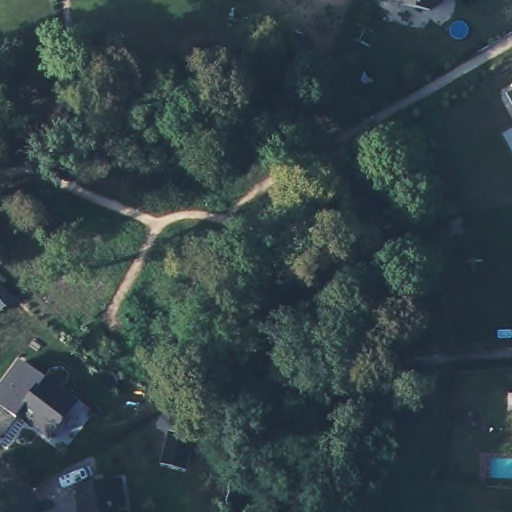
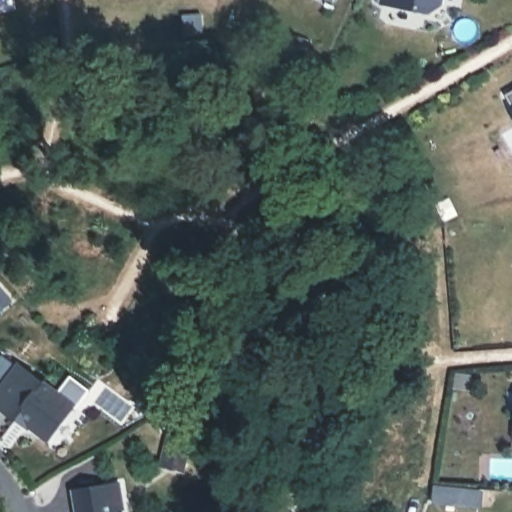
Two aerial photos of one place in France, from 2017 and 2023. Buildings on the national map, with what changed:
unchanged [(430,15),(380,5),(381,0),(443,0),(442,5),(430,15)]
unchanged [(512,91),(512,107),(507,94),(512,91)]
unchanged [(42,381),(76,404),(50,442),(16,418),(0,406),(0,384),(16,363),(42,381)]
unchanged [(165,432),(191,438),(182,473),(157,464),(165,432)]
unchanged [(123,512),(77,512),(72,490),(119,482),(123,512)]

